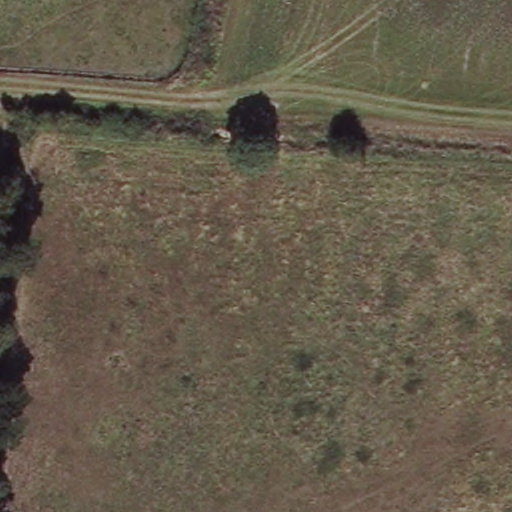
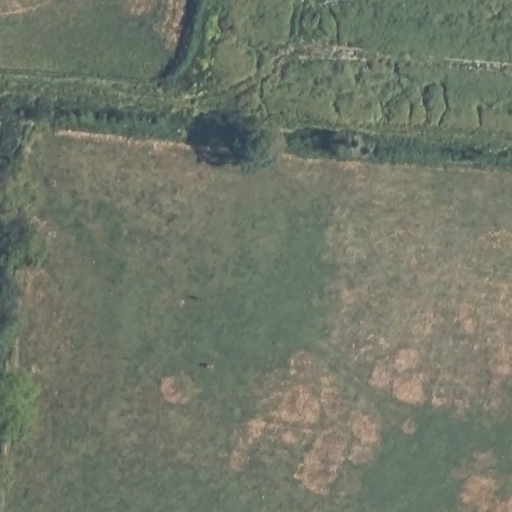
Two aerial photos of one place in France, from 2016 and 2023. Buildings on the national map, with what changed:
[]

